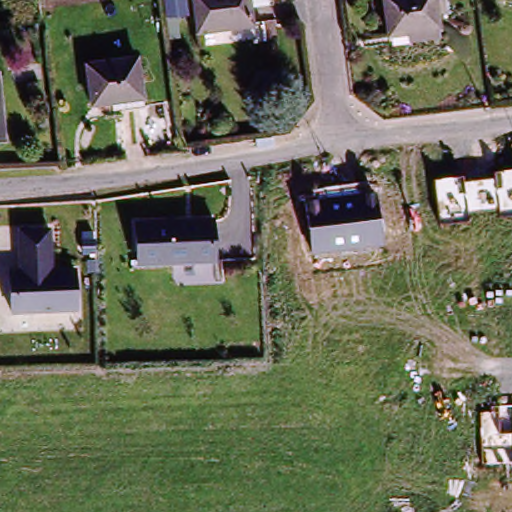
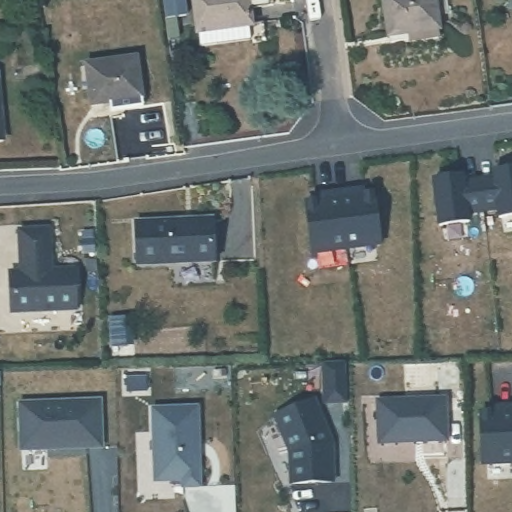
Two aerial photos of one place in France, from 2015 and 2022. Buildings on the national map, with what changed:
unchanged [(164,8),(163,0),(184,0),(184,6),(164,8)]
unchanged [(190,0),(257,0),(242,2),(244,20),(192,25),(190,0)]
unchanged [(409,28),(383,31),(379,0),(439,0),(442,24),(443,35),(410,40),(409,28)]
unchanged [(134,58),(137,96),(90,100),(86,61),(134,58)]
unchanged [(498,211),(467,214),(468,222),(439,225),(434,181),(463,177),(464,182),(496,178),(495,172),(512,170),(512,217),(499,219),(498,211)]
unchanged [(382,247),(312,256),(304,197),(375,190),(382,247)]
unchanged [(212,261),(134,263),(133,220),(210,218),(212,261)]
unchanged [(76,309),(10,316),(6,276),(21,274),(20,265),(16,265),(12,233),(42,230),(47,271),(71,269),(76,309)]
new [(322,366),(322,362),(345,361),(346,402),(342,402),(324,403),(322,366)]
new [(445,396),(447,439),(378,441),(376,398),(445,396)]
new [(99,398),(101,445),(21,449),(18,402),(99,398)]
new [(333,443),(334,482),(292,484),(290,453),(275,415),(314,399),(333,443)]
unchanged [(492,405),(512,405),(512,464),(481,465),(480,413),(492,412),(492,405)]
new [(199,406),(202,486),(184,487),(184,480),(156,481),(153,407),(199,406)]

